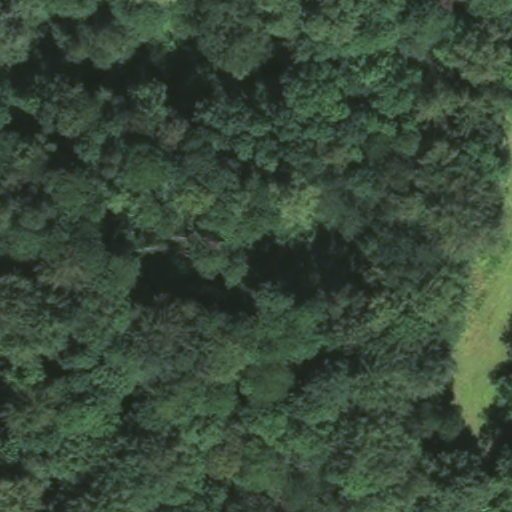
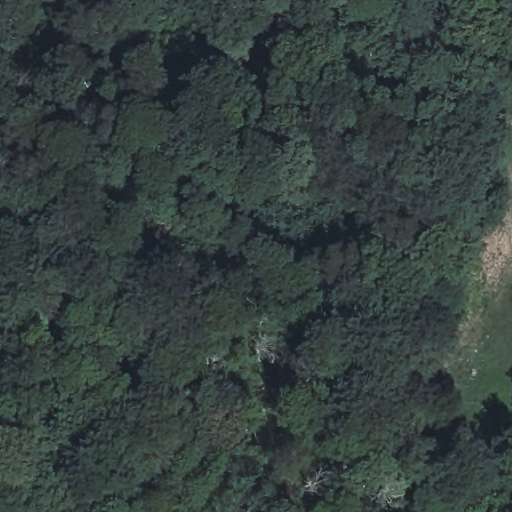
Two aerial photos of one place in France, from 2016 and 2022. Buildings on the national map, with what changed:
[]

